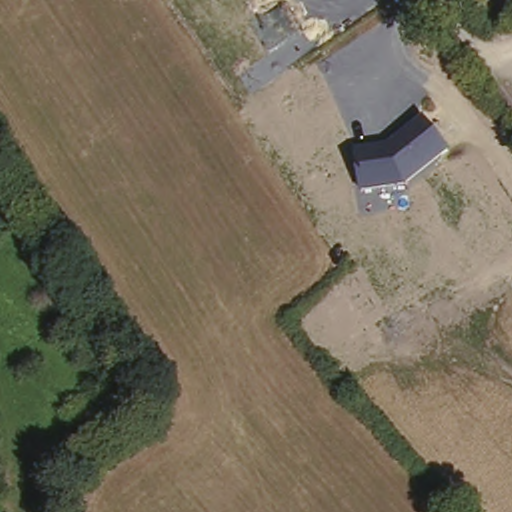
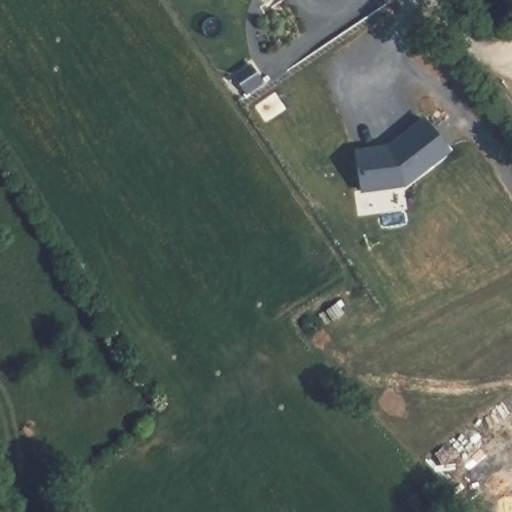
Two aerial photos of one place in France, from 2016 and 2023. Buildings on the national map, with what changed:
unchanged [(453,153),(407,188),(360,195),(353,149),(390,144),(423,119),(453,153)]

